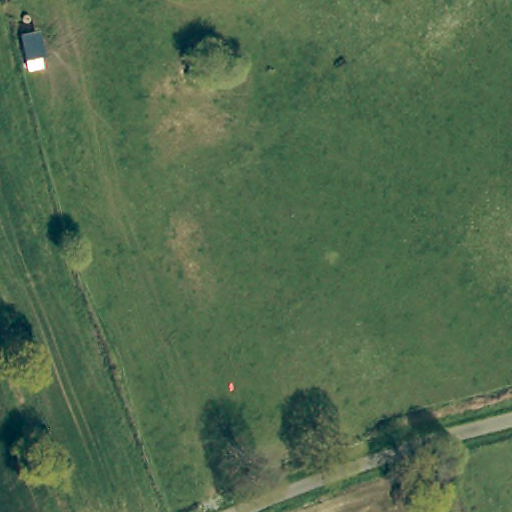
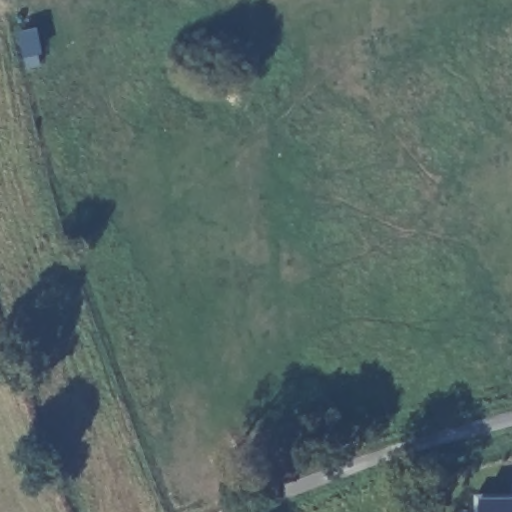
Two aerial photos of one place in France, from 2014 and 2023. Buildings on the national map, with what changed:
new [(476,497),(498,497),(498,502),(512,501),(512,512),(476,512),(476,497)]

